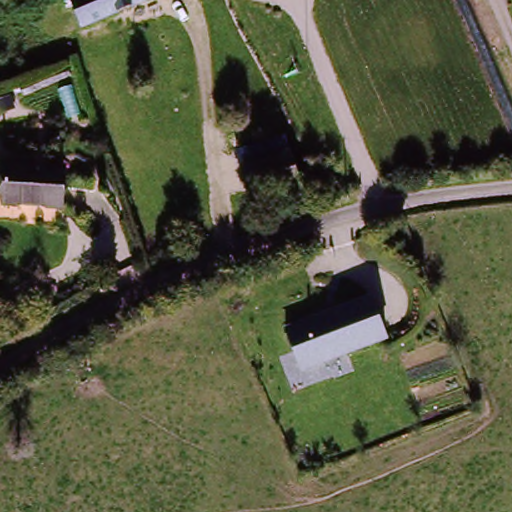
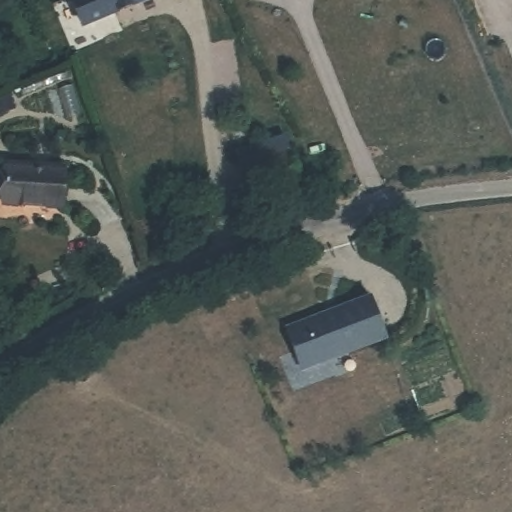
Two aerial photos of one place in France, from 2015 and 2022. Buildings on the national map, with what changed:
unchanged [(85,26),(75,0),(146,0),(85,26)]
unchanged [(250,201),(242,172),(237,155),(285,141),(290,156),(299,185),(250,201)]
unchanged [(300,171),(295,154),(323,145),(329,162),(300,171)]
unchanged [(5,207),(6,167),(65,170),(64,210),(5,207)]
unchanged [(290,333),(330,316),(331,320),(339,316),(337,313),(375,298),(391,339),(311,371),(305,370),(290,333)]

